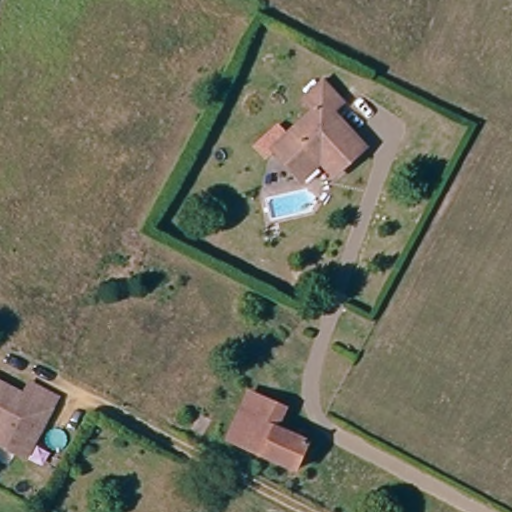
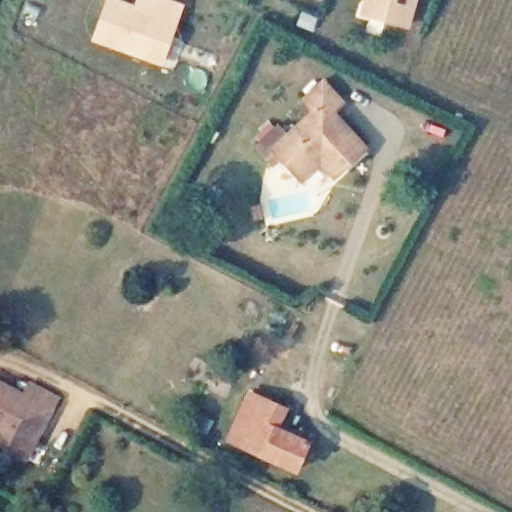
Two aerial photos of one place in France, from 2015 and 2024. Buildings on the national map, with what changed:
new [(104,0),(122,0),(133,4),(134,0),(173,0),(185,5),(162,67),(89,41),(104,0)]
new [(410,31),(360,17),(364,0),(419,0),(410,31)]
unchanged [(277,127),(288,137),(313,111),(302,99),(320,79),(341,103),(333,113),(365,149),(335,177),(317,159),(300,175),(276,149),(278,148),(267,138),(277,127)]
unchanged [(0,451),(0,383),(25,398),(35,381),(64,396),(55,412),(28,467),(0,451)]
unchanged [(286,407),(275,426),(301,442),(286,468),(226,436),(251,390),(286,407)]

